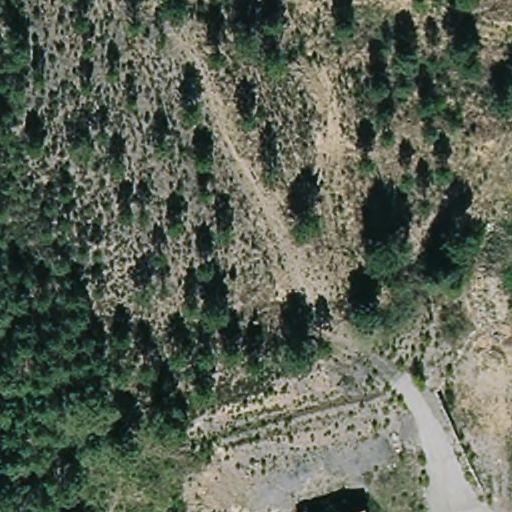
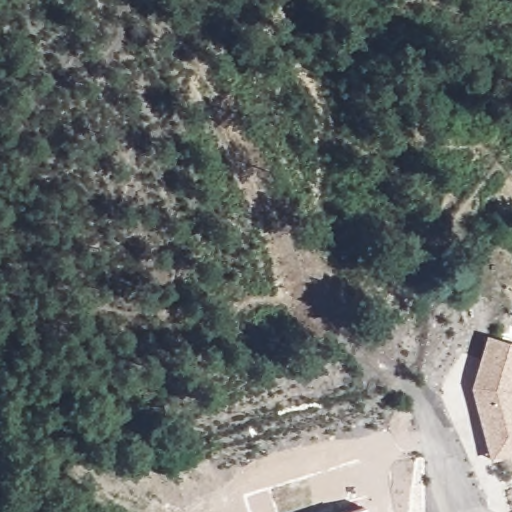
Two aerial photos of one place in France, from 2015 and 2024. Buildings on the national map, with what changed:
new [(471,389),(486,337),(512,344),(512,456),(491,463),(471,389)]
demolished [(372,509),(374,512),(362,512),(372,509)]

